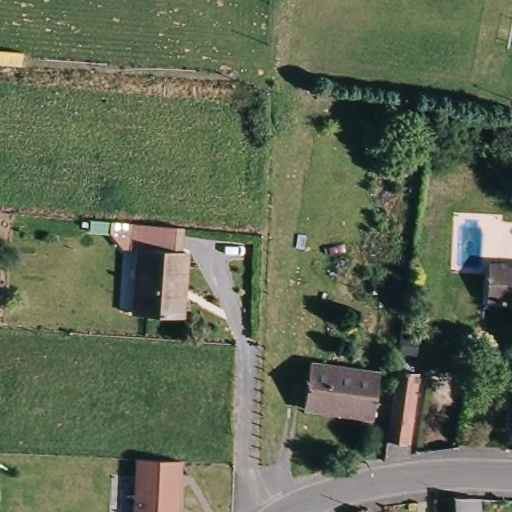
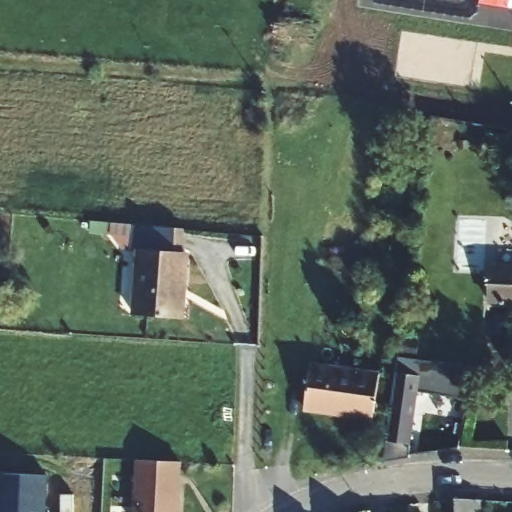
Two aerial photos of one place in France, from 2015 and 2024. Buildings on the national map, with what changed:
unchanged [(70,216),(98,219),(96,231),(70,231),(70,216)]
unchanged [(129,224),(183,229),(182,255),(140,252),(127,251),(129,224)]
unchanged [(189,255),(189,276),(184,276),(183,300),(191,301),(189,321),(137,318),(140,252),(182,255),(189,255)]
unchanged [(491,263),(512,265),(512,302),(486,298),(491,263)]
unchanged [(313,363),(380,373),(375,417),(306,408),(313,363)]
unchanged [(402,365),(425,367),(412,457),(390,461),(402,365)]
unchanged [(183,467),(181,512),(139,512),(141,465),(183,467)]
new [(48,476),(47,512),(0,512),(0,474),(48,476)]
new [(74,495),(73,512),(60,512),(61,494),(74,495)]
unchanged [(468,512),(442,512),(441,500),(467,501),(468,512)]

